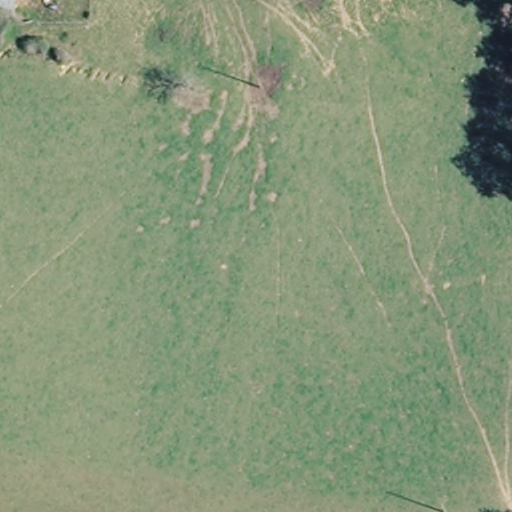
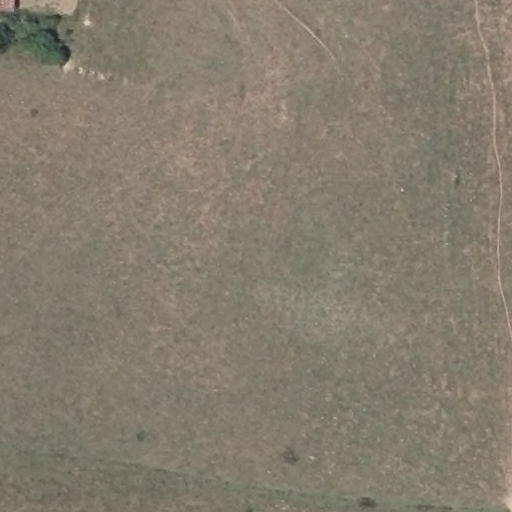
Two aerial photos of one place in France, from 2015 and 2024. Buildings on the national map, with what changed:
unchanged [(0,5),(0,0),(19,0),(19,6),(0,5)]

